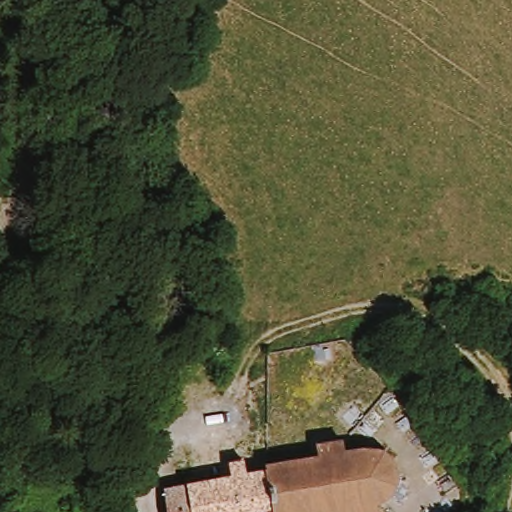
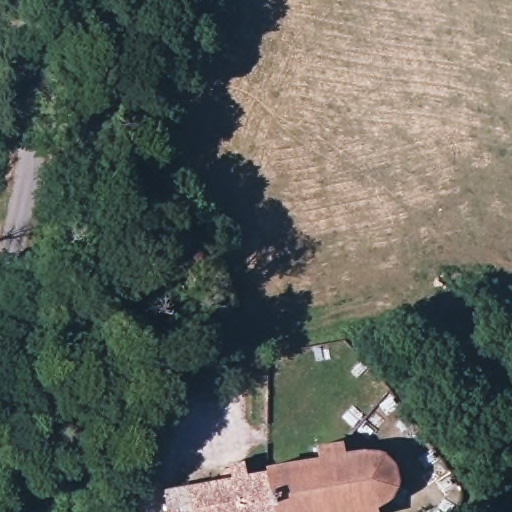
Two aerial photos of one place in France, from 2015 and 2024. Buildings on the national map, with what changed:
unchanged [(265,481),(312,476),(310,465),(338,464),(341,476),(373,471),(378,472),(384,475),(389,480),(392,486),(394,493),(393,501),(390,507),(386,512),(269,512),(265,481)]
unchanged [(218,485),(219,483),(222,479),(226,477),(230,478),(234,480),(237,484),(265,481),(269,512),(192,512),(188,488),(205,486),(218,485)]
unchanged [(192,512),(166,512),(163,492),(188,488),(192,512)]

